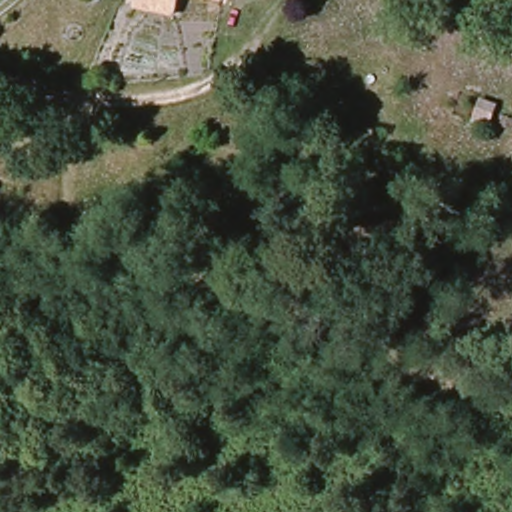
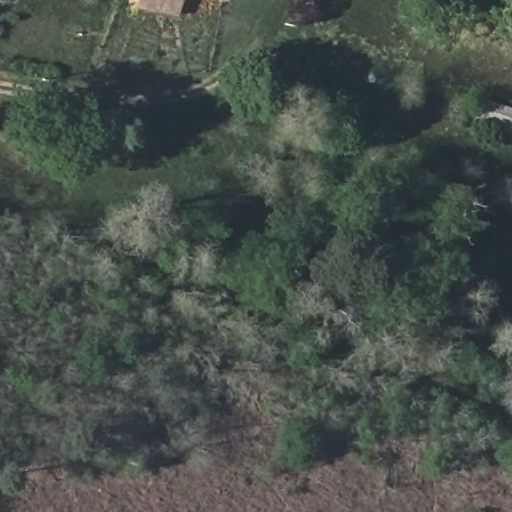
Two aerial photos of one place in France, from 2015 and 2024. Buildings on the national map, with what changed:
unchanged [(146,0),(181,0),(181,16),(143,12),(146,0)]

